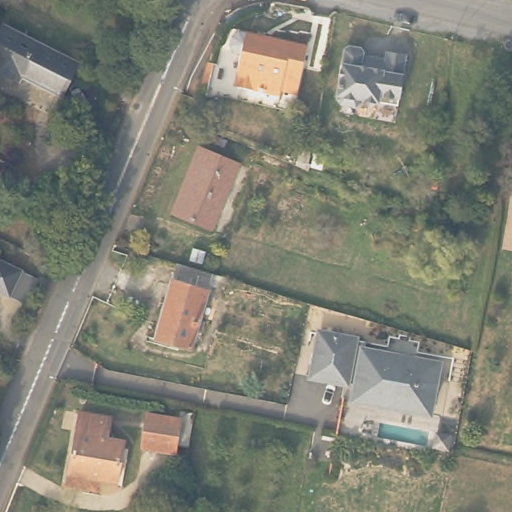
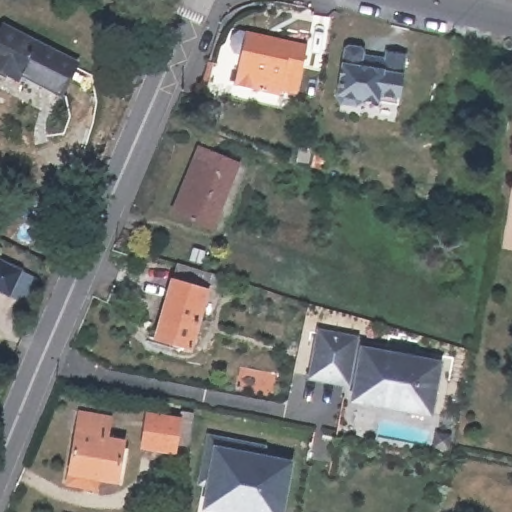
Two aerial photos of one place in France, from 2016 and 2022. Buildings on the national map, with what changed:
unchanged [(243,61),(246,48),(239,46),(236,39),(238,30),(244,25),(312,40),(302,88),(291,86),(287,103),(220,88),(219,91),(207,89),(206,93),(203,91),(214,56),(217,56),(243,61)]
unchanged [(15,77),(12,82),(0,76),(0,39),(4,31),(76,68),(60,101),(15,77)]
unchanged [(379,101),(362,99),(361,102),(356,106),(341,104),(337,99),(345,49),(349,46),(361,48),(363,51),(363,55),(385,59),(386,51),(406,55),(398,102),(398,105),(379,101)]
unchanged [(309,163),(296,161),(296,158),(298,145),(311,146),(309,163)]
unchanged [(238,169),(211,233),(174,218),(200,153),(238,169)]
unchanged [(14,297),(0,290),(0,258),(26,271),(14,297)]
unchanged [(198,284),(184,280),(188,267),(202,271),(198,284)]
unchanged [(221,298),(218,308),(205,305),(195,340),(200,341),(196,354),(191,353),(186,369),(149,358),(171,283),(208,294),(221,298)]
unchanged [(377,403),(352,399),(355,379),(346,377),(345,382),(310,377),(317,333),(352,338),(363,340),(361,350),(385,353),(412,358),(436,362),(430,397),(428,412),(402,407),(377,403)]
unchanged [(83,498),(84,492),(63,489),(75,417),(106,423),(102,444),(119,447),(116,463),(121,464),(118,488),(92,483),(91,493),(89,493),(89,499),(83,498)]
unchanged [(171,427),(185,429),(179,461),(166,459),(165,468),(132,463),(138,429),(170,434),(171,427)]
new [(206,486),(198,484),(206,433),(268,446),(267,455),(295,460),(285,512),(216,512),(202,509),(206,486)]

